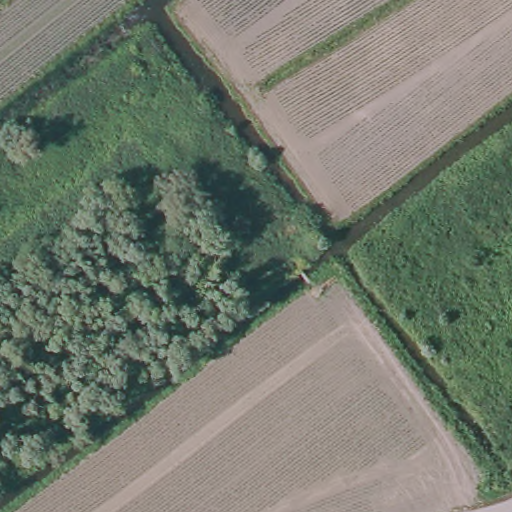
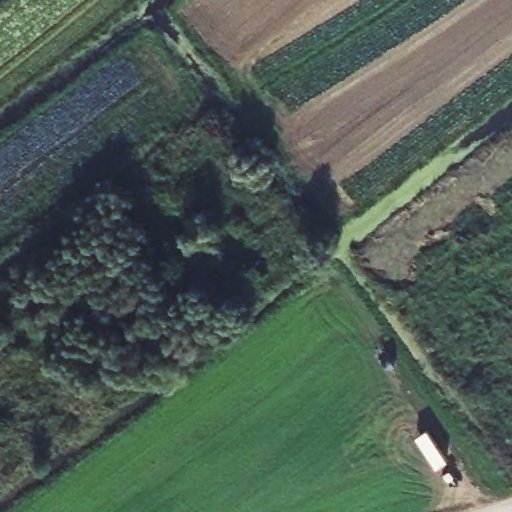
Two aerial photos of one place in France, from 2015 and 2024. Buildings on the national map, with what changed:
[]

